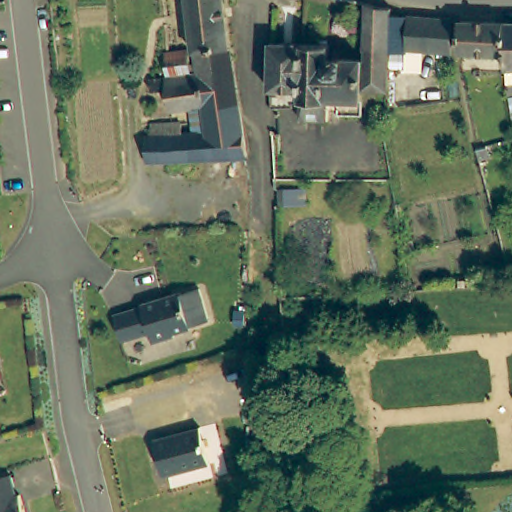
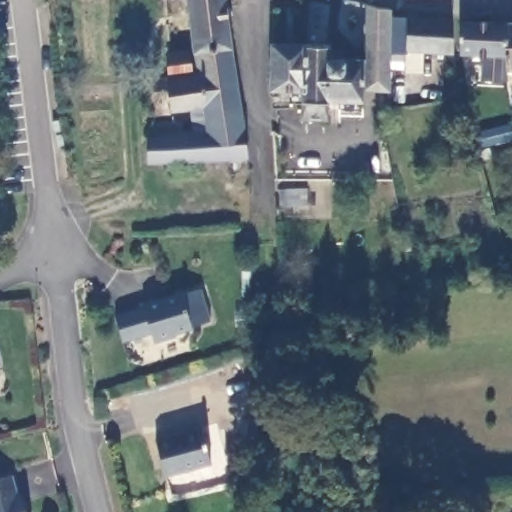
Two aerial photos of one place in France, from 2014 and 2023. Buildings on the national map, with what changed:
unchanged [(177,139),(191,140),(191,124),(190,114),(170,113),(170,92),(156,93),(156,90),(155,78),(173,77),(172,56),(174,56),(194,55),(195,80),(203,80),(187,2),(175,0),(221,0),(242,156),(238,156),(212,158),(151,162),(141,163),(142,153),(142,136),(147,136),(148,125),(178,128),(177,139)]
unchanged [(300,120),(299,89),(276,90),(266,90),(267,44),(326,44),(326,59),(361,60),(361,62),(364,62),(364,49),(361,49),(363,5),(388,10),(387,19),(403,19),(448,22),(452,53),(447,54),(448,66),(417,65),(417,59),(403,59),(403,52),(386,52),(385,92),(361,92),(361,117),(339,116),(339,121),(325,121),(300,120)]
unchanged [(500,55),(499,55),(460,53),(456,22),(499,24),(500,55)]
unchanged [(504,99),(501,71),(499,55),(500,55),(499,24),(512,24),(512,70),(511,70),(512,75),(512,98),(504,99)]
unchanged [(480,145),(489,142),(491,151),(482,154),(480,147),(480,145)]
unchanged [(193,326),(193,328),(176,333),(177,335),(156,342),(153,332),(124,340),(116,313),(145,305),(144,303),(183,292),(184,294),(202,289),(212,320),(193,326)]
unchanged [(207,421),(217,457),(170,470),(160,433),(207,421)]
unchanged [(22,497),(26,512),(0,512),(0,482),(12,478),(19,498),(22,497)]

